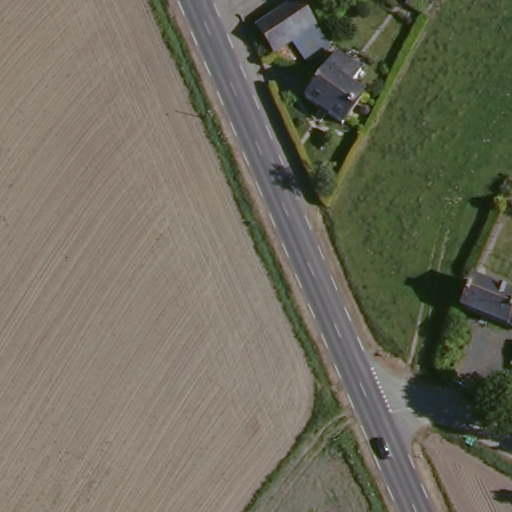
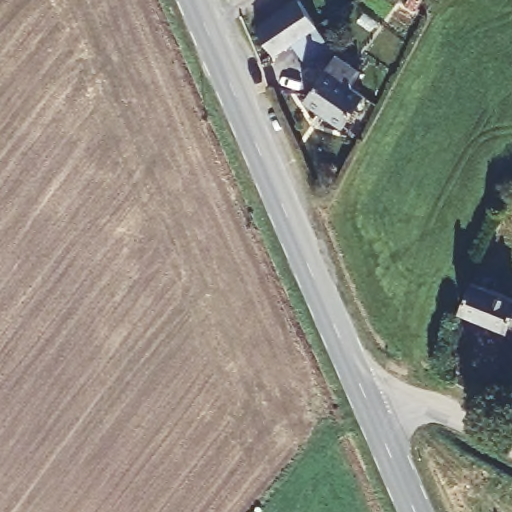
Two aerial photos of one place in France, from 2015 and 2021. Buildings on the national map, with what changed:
unchanged [(303,67),(290,46),(275,56),(257,30),(296,2),(313,29),(326,51),(303,67)]
unchanged [(332,60),(358,77),(350,90),(359,96),(340,126),(303,105),(332,60)]
unchanged [(512,322),(508,320),(507,322),(462,305),(472,277),(512,292),(512,322)]

